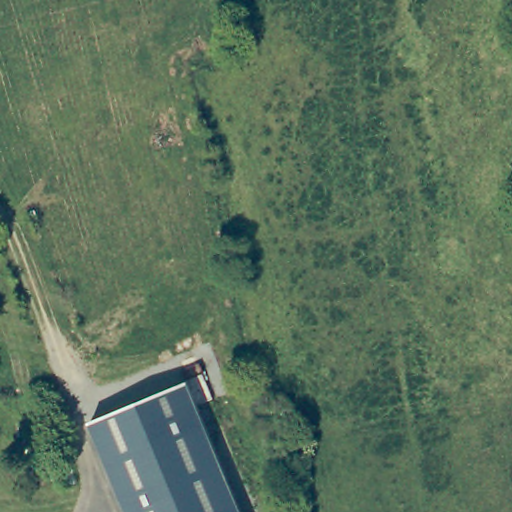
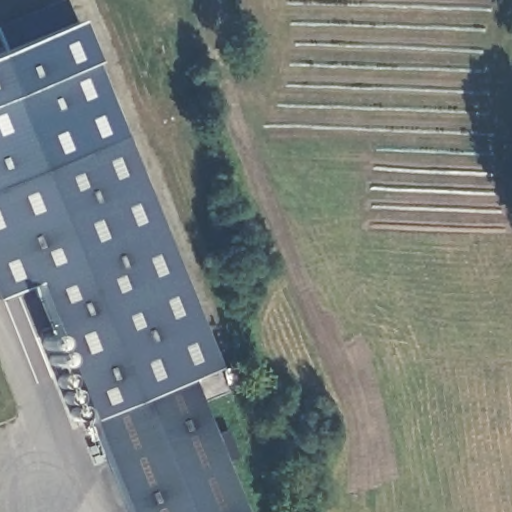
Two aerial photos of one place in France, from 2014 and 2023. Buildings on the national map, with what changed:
new [(92,422),(34,283),(0,297),(0,188),(123,137),(218,368),(189,380),(189,382),(92,422)]
unchanged [(92,422),(189,382),(243,512),(129,512),(92,422)]

